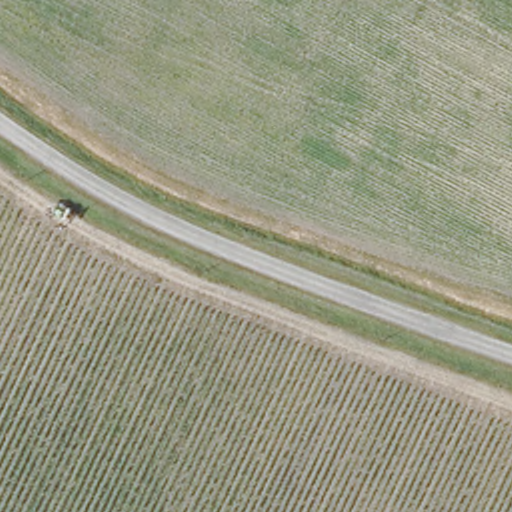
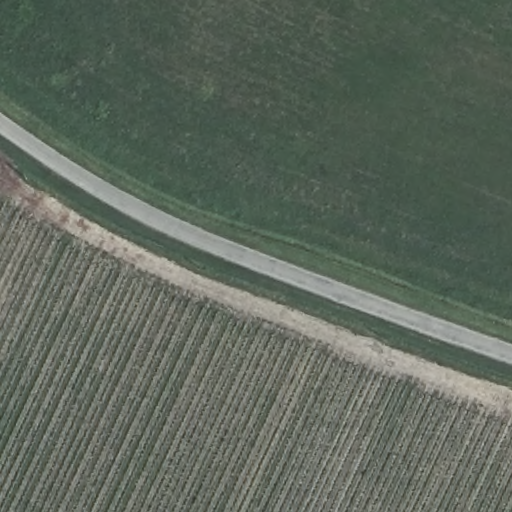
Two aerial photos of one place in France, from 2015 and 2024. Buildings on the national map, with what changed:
[]

